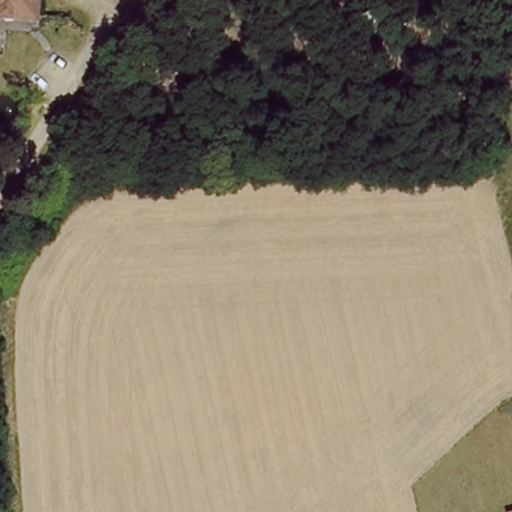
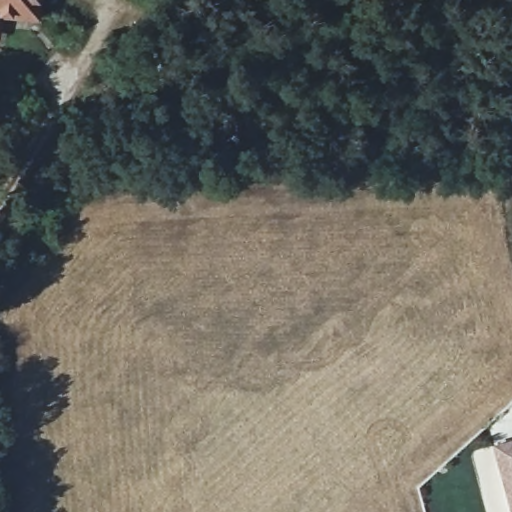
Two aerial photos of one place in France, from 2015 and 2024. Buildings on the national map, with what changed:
unchanged [(37,9),(0,8),(0,0),(38,0),(37,9)]
new [(512,440),(512,511),(510,512),(492,445),(512,440)]
unchanged [(512,512),(510,512),(512,511),(512,512)]

